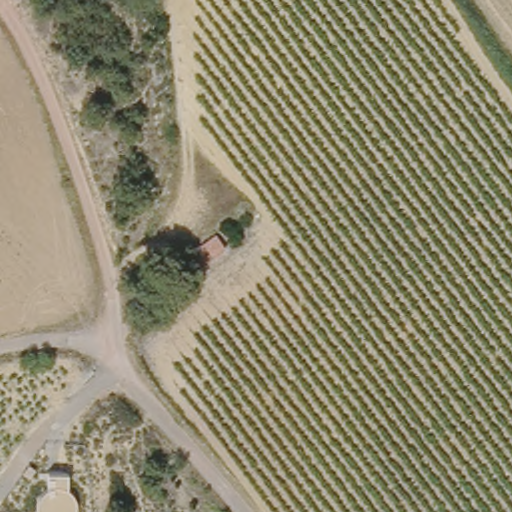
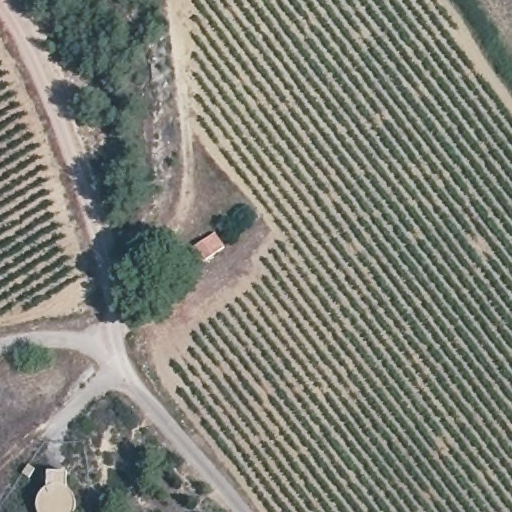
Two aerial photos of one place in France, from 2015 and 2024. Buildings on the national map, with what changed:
unchanged [(215,235),(224,248),(196,267),(185,254),(215,235)]

